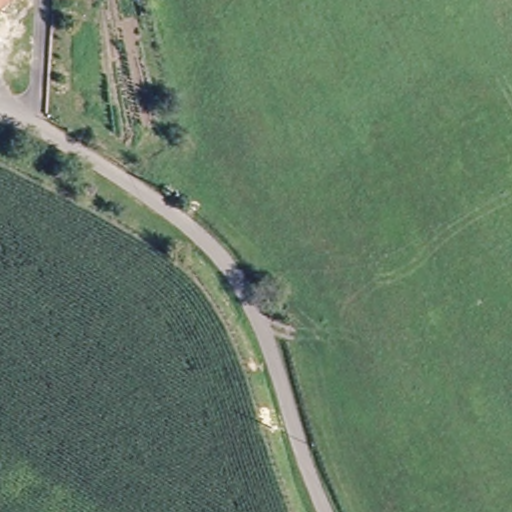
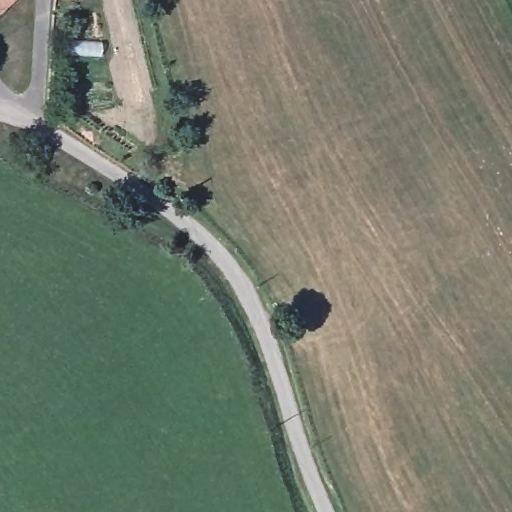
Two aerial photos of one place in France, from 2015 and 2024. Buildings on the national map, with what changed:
unchanged [(0,0),(9,0),(0,7),(0,0)]
unchanged [(59,74),(37,85),(20,47),(44,36),(59,74)]

